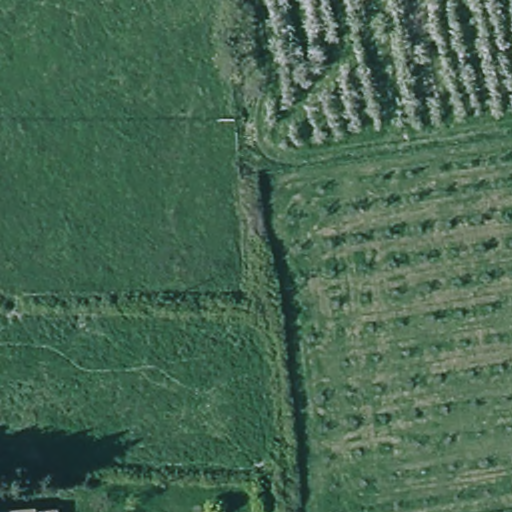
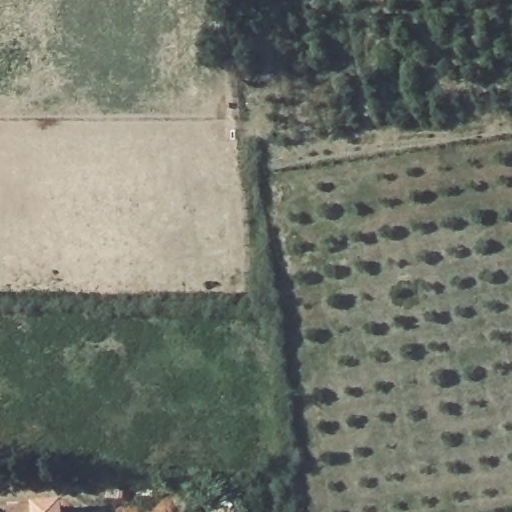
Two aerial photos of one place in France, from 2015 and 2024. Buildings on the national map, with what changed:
unchanged [(20,512),(35,511),(35,512),(20,512)]

